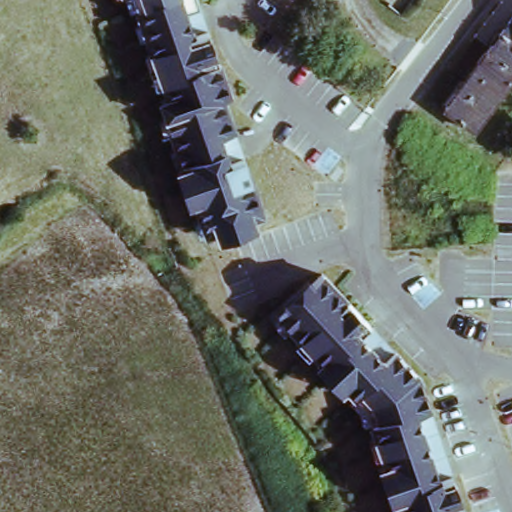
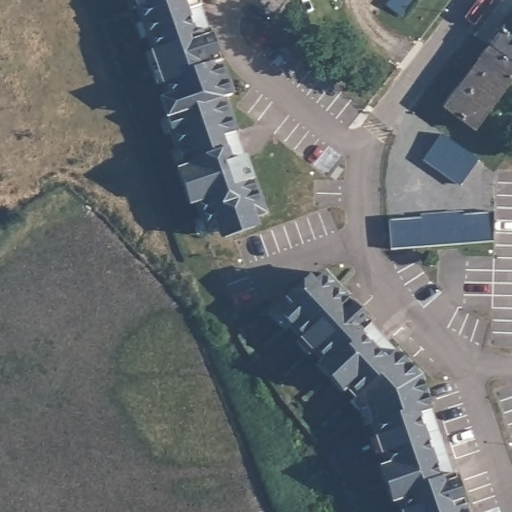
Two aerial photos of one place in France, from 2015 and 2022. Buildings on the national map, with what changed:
unchanged [(194,207),(182,210),(173,176),(184,172),(134,6),(130,7),(127,0),(197,0),(200,12),(185,17),(192,44),(212,37),(230,101),(238,131),(225,135),(233,158),(248,157),(259,192),(264,216),(255,219),(257,232),(225,245),(217,234),(203,239),(194,207)]
unchanged [(492,41),(512,16),(512,58),(492,41)]
unchanged [(473,122),(443,99),(492,41),(512,58),(512,74),(473,122)]
new [(458,187),(425,160),(444,137),(477,165),(458,187)]
new [(492,215),(494,245),(392,249),(392,220),(492,215)]
unchanged [(375,328),(362,342),(384,364),(399,352),(423,379),(435,413),(417,418),(437,476),(457,472),(471,512),(404,512),(400,501),(385,505),(375,472),(387,465),(371,427),(379,423),(373,406),(353,390),(341,399),(314,370),(322,362),(274,315),(325,274),(375,328)]

